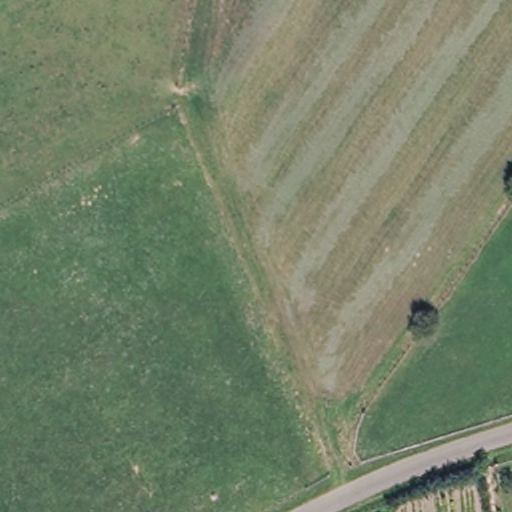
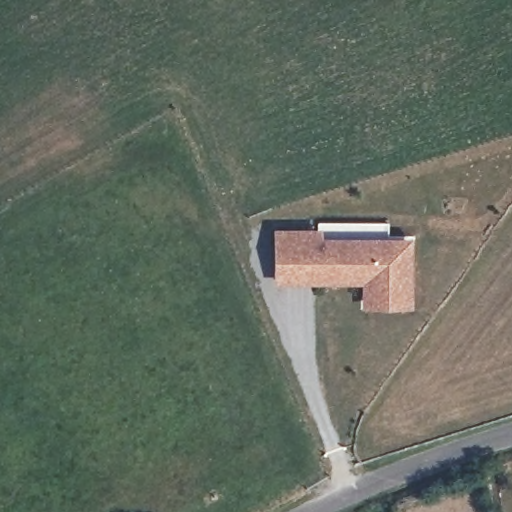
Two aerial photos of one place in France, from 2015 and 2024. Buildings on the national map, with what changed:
new [(322,228),(322,239),(412,238),(412,307),(361,308),(361,286),(273,285),(274,228),(322,228)]

